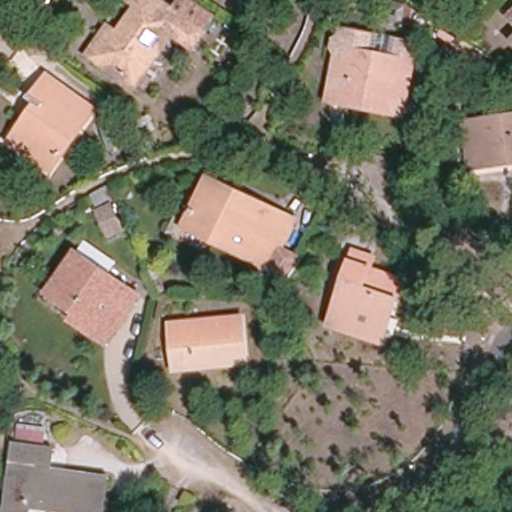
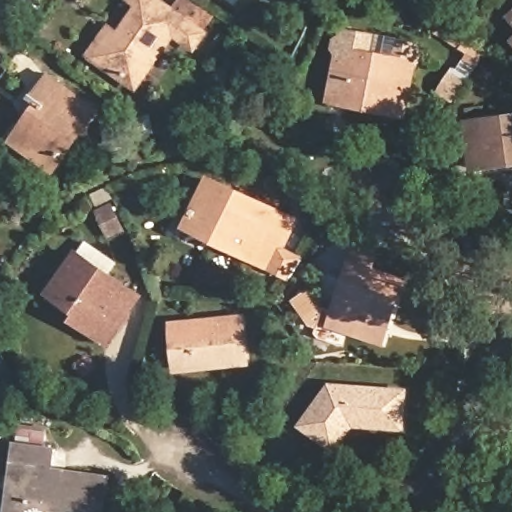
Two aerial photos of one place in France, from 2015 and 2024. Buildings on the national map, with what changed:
unchanged [(94,54),(110,31),(115,36),(136,7),(130,2),(132,0),(157,0),(174,12),(183,0),(191,0),(200,6),(211,14),(199,31),(204,35),(193,49),(172,33),(152,62),(149,60),(131,82),(94,54)]
unchanged [(330,101),(336,62),(335,62),(336,57),(332,51),(335,36),(340,31),(375,38),(372,56),(391,59),(395,42),(411,45),(417,53),(415,64),(412,64),(402,115),(382,111),(347,104),(330,101)]
unchanged [(51,84),(95,116),(55,173),(21,147),(15,143),(42,105),(38,103),(51,84)]
unchanged [(470,170),(465,124),(512,118),(512,165),(486,168),(470,170)]
unchanged [(250,253),(251,252),(185,219),(187,213),(195,196),(207,174),(288,215),(275,242),(296,253),(285,271),(250,253)]
unchanged [(107,233),(99,215),(97,211),(110,205),(112,209),(120,226),(107,233)]
unchanged [(330,326),(333,318),(355,251),(375,258),(370,271),(403,282),(396,302),(382,342),(330,326)]
unchanged [(136,296),(106,339),(74,317),(77,313),(49,293),(76,254),(136,296)]
unchanged [(176,362),(173,324),(240,317),(244,363),(225,365),(177,369),(176,362)]
new [(403,430),(353,427),(334,453),(297,426),(326,382),(406,387),(403,430)]
unchanged [(15,444),(17,429),(44,433),(41,448),(46,449),(44,469),(100,477),(95,512),(63,512),(25,506),(24,512),(0,512),(10,444),(15,444)]

